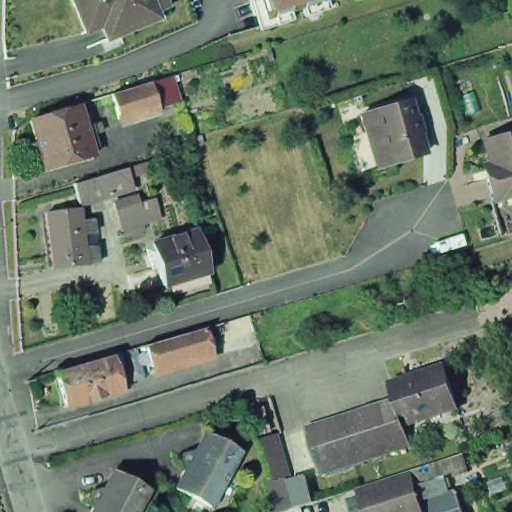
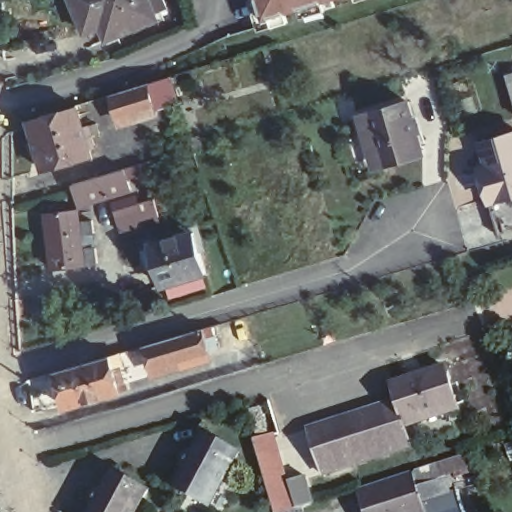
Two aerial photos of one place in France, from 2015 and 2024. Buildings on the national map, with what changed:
unchanged [(92,23),(77,30),(65,0),(157,0),(158,4),(147,9),(150,15),(110,32),(98,37),(92,23)]
unchanged [(262,21),(255,0),(332,0),(262,21)]
unchanged [(512,70),(512,89),(506,71),(512,70)]
unchanged [(127,93),(165,81),(172,103),(134,114),(127,93)]
unchanged [(365,130),(364,130),(359,113),(410,97),(425,150),(385,162),(385,161),(376,164),(365,130)]
unchanged [(40,166),(27,118),(75,105),(80,124),(85,123),(92,144),(87,146),(88,152),(40,166)]
unchanged [(492,204),(482,168),(490,166),(483,144),(512,136),(512,198),(492,204)]
unchanged [(68,182),(100,173),(120,167),(140,161),(143,169),(123,175),(127,188),(106,194),(75,203),(68,182)]
unchanged [(107,201),(132,193),(135,206),(150,202),(155,215),(139,219),(140,222),(116,229),(107,201)]
unchanged [(49,267),(42,211),(75,208),(77,219),(89,217),(90,230),(92,244),(94,261),(82,263),(49,267)]
unchanged [(192,224),(203,265),(158,278),(147,237),(192,224)]
unchanged [(143,353),(185,340),(203,335),(208,333),(212,345),(207,347),(210,358),(192,363),(150,375),(143,353)]
unchanged [(115,389),(116,394),(62,410),(50,374),(105,358),(110,372),(116,370),(121,387),(115,389)]
unchanged [(397,403),(390,383),(443,365),(457,408),(404,426),(397,403)]
unchanged [(411,448),(322,477),(307,432),(397,403),(404,426),(411,448)]
unchanged [(251,411),(262,408),(269,432),(257,435),(251,411)]
unchanged [(234,454),(204,509),(170,491),(180,471),(177,458),(189,454),(200,435),(234,454)]
unchanged [(274,512),(268,490),(255,440),(275,435),(295,511),(292,512),(274,512)]
unchanged [(413,472),(418,488),(443,481),(447,495),(423,503),(425,507),(460,495),(466,512),(365,512),(358,490),(413,472)]
unchanged [(133,512),(88,512),(90,509),(86,497),(98,493),(108,474),(143,492),(133,512)]
unchanged [(303,508),(305,512),(292,512),(295,511),(303,508)]

